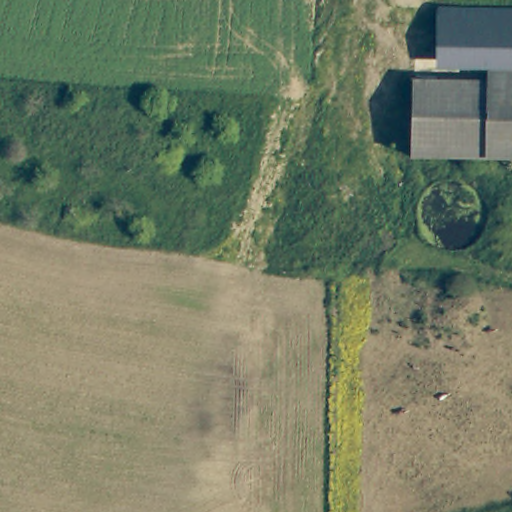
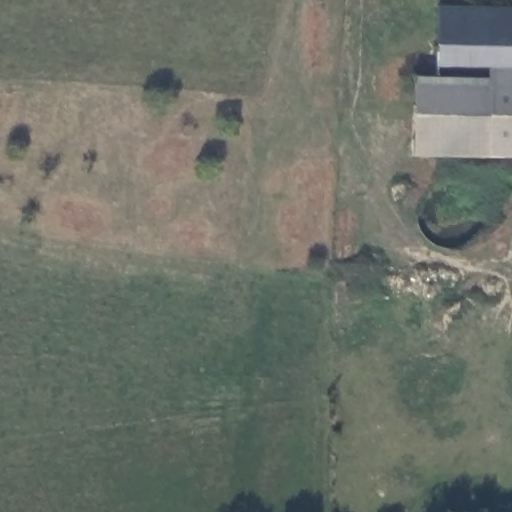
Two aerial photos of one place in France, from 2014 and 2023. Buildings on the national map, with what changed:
unchanged [(434,50),(434,4),(512,8),(512,53),(434,50)]
unchanged [(512,53),(512,81),(481,79),(481,66),(434,67),(434,50),(512,53)]
unchanged [(407,152),(409,77),(481,79),(479,155),(407,152)]
unchanged [(481,79),(512,81),(512,156),(479,155),(481,79)]

